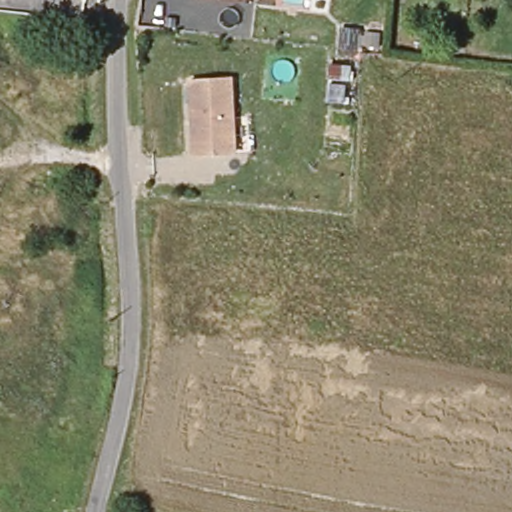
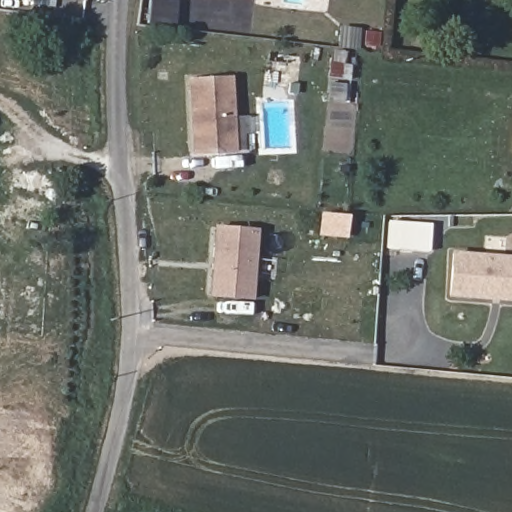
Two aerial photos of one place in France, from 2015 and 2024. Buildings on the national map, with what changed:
unchanged [(366,31),(381,33),(380,47),(365,46),(366,31)]
unchanged [(331,65),(350,66),(348,80),(330,79),(331,65)]
unchanged [(225,154),(195,156),(191,82),(231,80),(235,144),(235,154),(225,154)]
new [(257,230),(252,299),(212,296),(218,227),(257,230)]
new [(447,298),(450,252),(512,256),(512,303),(447,298)]

